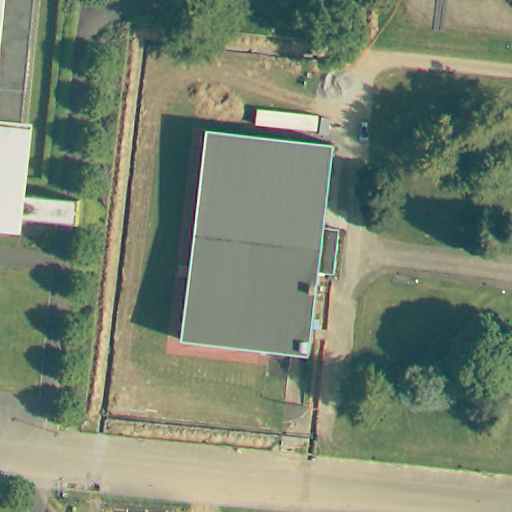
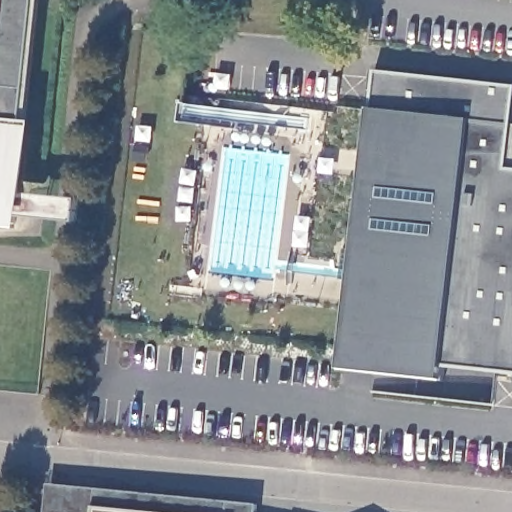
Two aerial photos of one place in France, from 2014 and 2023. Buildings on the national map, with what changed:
unchanged [(10,224),(0,223),(0,0),(34,0),(33,15),(10,224)]
new [(440,380),(341,369),(370,109),(374,70),(512,86),(512,104),(505,168),(512,169),(512,373),(442,366),(440,380)]
demolished [(210,125),(335,142),(324,223),(339,226),(333,271),(318,269),(307,354),(287,352),(181,339),(210,126),(210,125)]
new [(45,512),(48,484),(257,504),(256,512),(45,512)]

